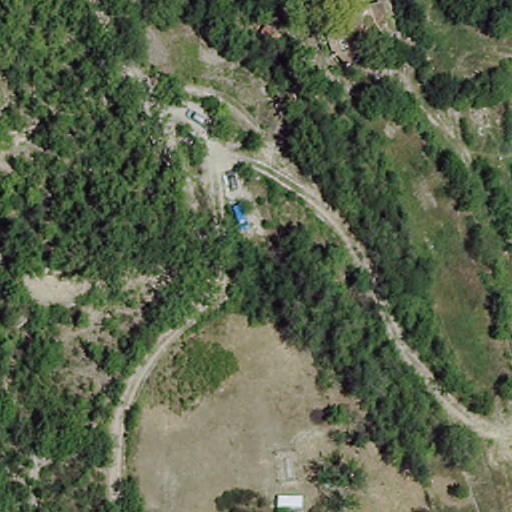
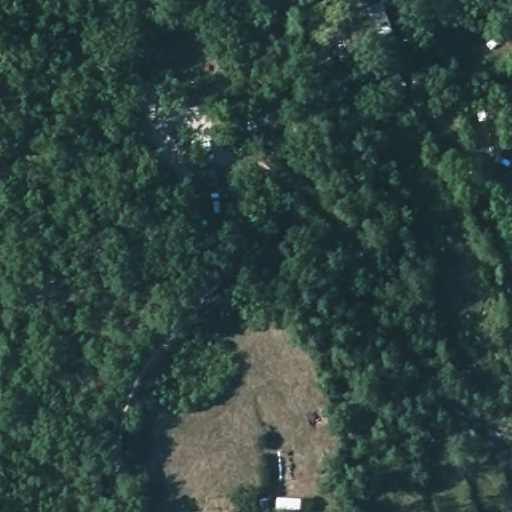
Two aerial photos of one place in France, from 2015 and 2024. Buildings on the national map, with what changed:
unchanged [(343,55),(338,34),(353,30),(350,17),(394,4),(403,33),(368,45),(370,60),(356,66),(343,55)]

